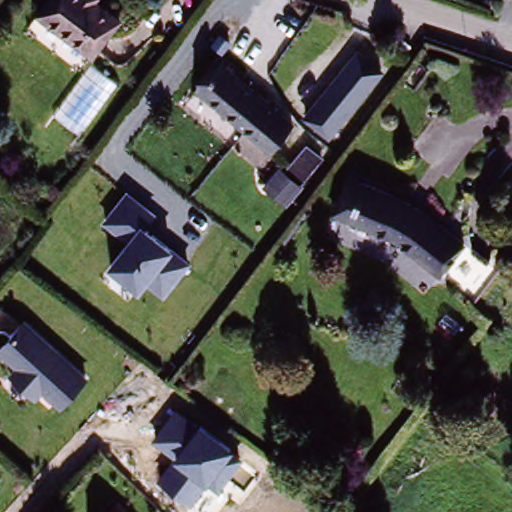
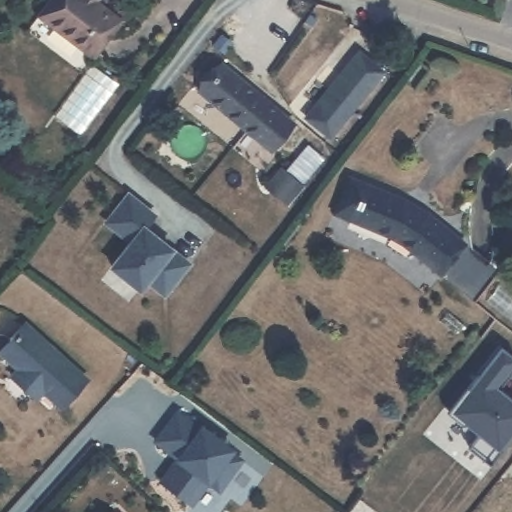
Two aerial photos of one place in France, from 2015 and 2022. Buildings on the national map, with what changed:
unchanged [(115,19),(88,56),(49,26),(40,38),(29,29),(38,17),(34,15),(46,0),(89,0),(115,19)]
unchanged [(399,47),(405,41),(412,47),(407,53),(399,47)]
unchanged [(386,68),(328,138),(300,115),(357,46),(386,68)]
unchanged [(270,141),(199,82),(223,57),(294,114),(270,141)]
unchanged [(287,204),(267,188),(280,172),(288,179),(309,152),(321,161),(287,204)]
unchanged [(442,266),(396,229),(335,205),(351,170),(407,190),(431,204),(467,236),(442,266)]
unchanged [(149,283),(140,293),(107,267),(129,240),(100,218),(124,187),(156,211),(146,224),(193,260),(164,296),(149,283)]
unchanged [(60,401),(43,385),(36,392),(11,370),(18,363),(0,347),(0,345),(25,318),(86,373),(60,401)]
new [(479,373),(478,372),(499,345),(512,355),(512,373),(499,389),(499,391),(506,395),(508,395),(512,399),(512,430),(488,461),(468,444),(477,432),(449,411),(479,373)]
unchanged [(157,478),(174,456),(151,439),(176,407),(242,456),(217,489),(207,482),(190,503),(157,478)]

